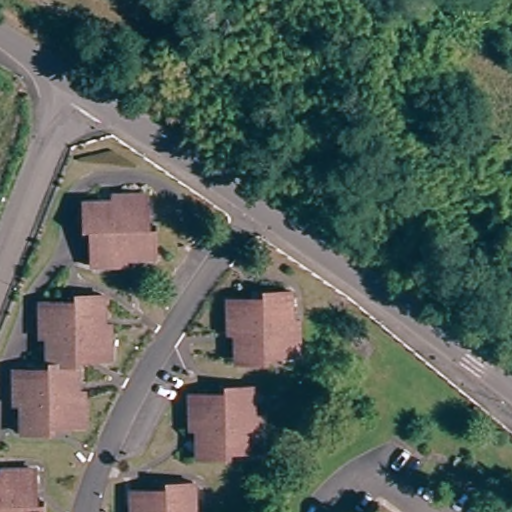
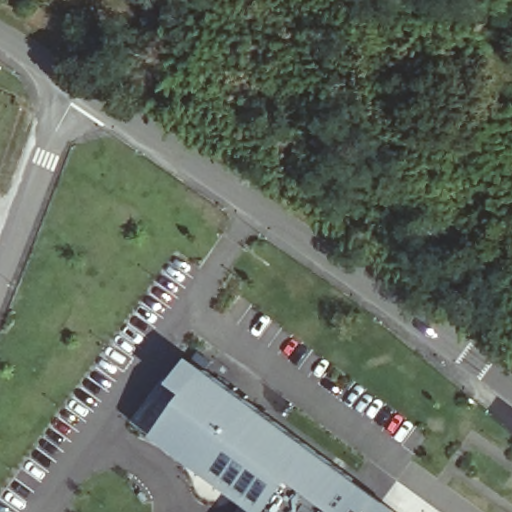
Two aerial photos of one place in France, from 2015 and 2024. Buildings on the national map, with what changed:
demolished [(161,254),(132,256),(132,262),(99,263),(98,233),(93,234),(92,202),(121,201),(120,195),(153,193),(154,221),(159,220),(161,254)]
demolished [(293,321),(299,321),(300,353),(272,353),(272,359),(239,359),(238,331),(233,331),(233,298),(259,298),(259,292),(293,292),(293,321)]
demolished [(80,392),(85,391),(86,423),(55,424),(56,429),(24,431),(23,401),(18,401),(17,372),(45,371),(45,364),(50,364),(50,334),(45,334),(44,302),(73,301),(73,296),(107,295),(108,323),(113,323),(114,355),(85,357),(85,362),(79,363),(80,392)]
demolished [(341,316),(332,310),(338,300),(347,307),(341,316)]
new [(246,512),(249,508),(156,440),(159,436),(139,423),(167,382),(173,385),(190,360),(400,512),(246,512)]
demolished [(266,447),(238,448),(238,453),(205,454),(203,425),(199,426),(198,393),(226,392),(226,387),(258,386),(260,415),(265,415),(266,447)]
demolished [(0,512),(0,476),(8,475),(8,470),(41,469),(42,498),(47,498),(47,512),(0,512)]
demolished [(166,489),(166,483),(199,482),(200,512),(140,512),(139,490),(166,489)]
demolished [(398,512),(377,512),(384,502),(398,512)]

